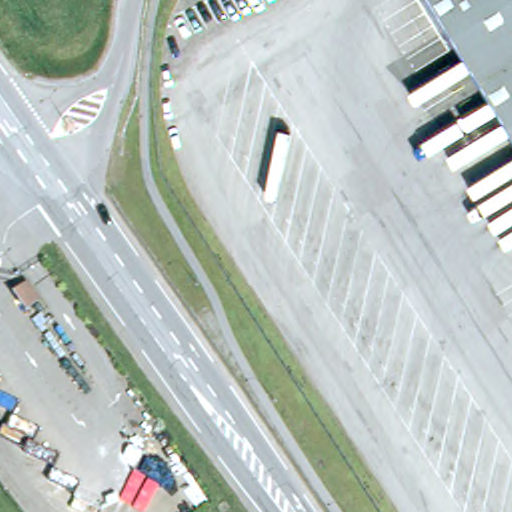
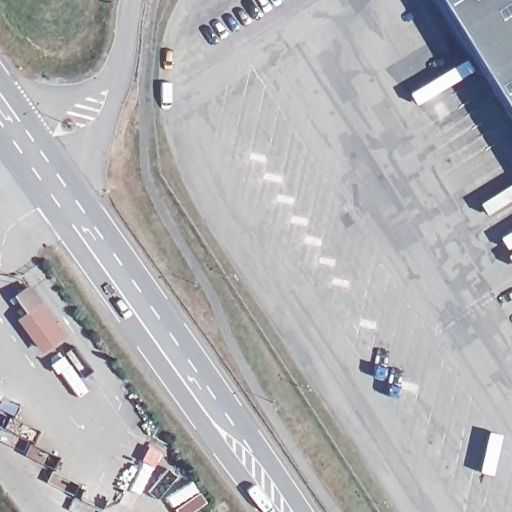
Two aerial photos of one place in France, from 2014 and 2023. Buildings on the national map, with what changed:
unchanged [(422,0),(512,0),(512,143),(422,0)]
new [(13,296),(26,287),(38,305),(62,337),(42,350),(19,317),(25,313),(13,296)]

